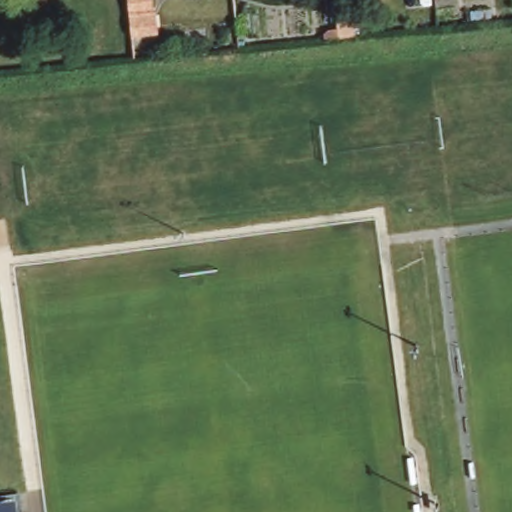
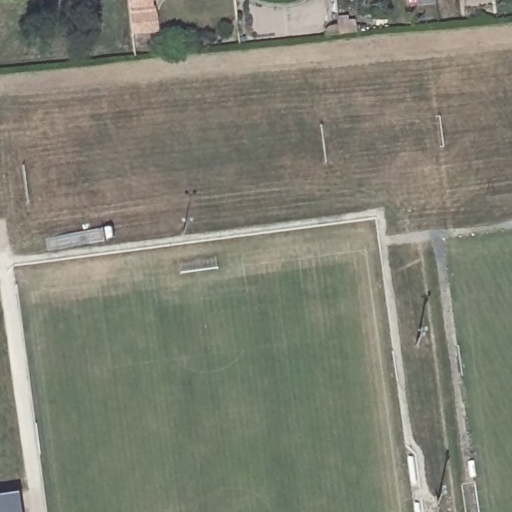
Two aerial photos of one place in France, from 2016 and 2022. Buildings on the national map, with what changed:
unchanged [(14,512),(0,512),(0,496),(12,495),(14,512)]

